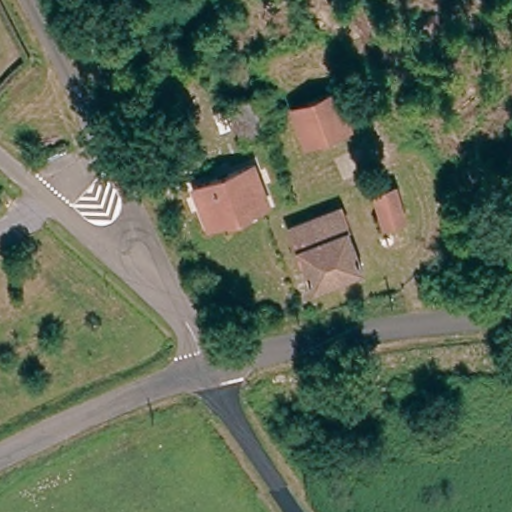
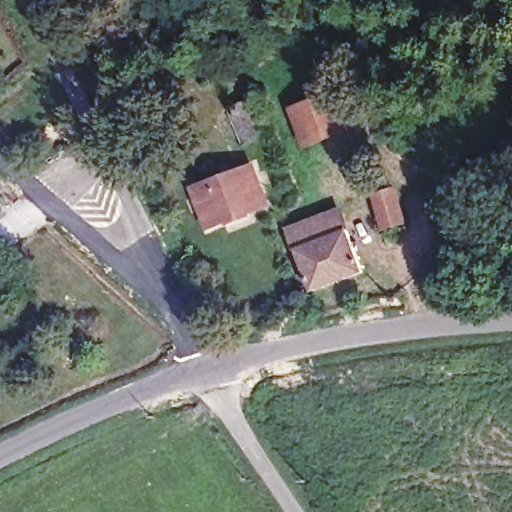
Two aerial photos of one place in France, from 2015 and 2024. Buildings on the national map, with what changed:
unchanged [(342,94),(358,129),(312,149),(297,114),(342,94)]
unchanged [(222,121),(250,106),(262,99),(278,131),(265,137),(237,151),(222,121)]
unchanged [(250,172),(267,212),(251,219),(252,222),(231,231),(230,227),(210,236),(194,196),(250,172)]
unchanged [(404,187),(414,225),(388,232),(378,197),(404,187)]
unchanged [(340,214),(365,272),(320,292),(295,234),(340,214)]
unchanged [(387,237),(388,237),(389,236),(391,236),(393,236),(395,237),(396,239),(397,241),(398,244),(397,246),(396,247),(394,249),(393,249),(392,249),(390,249),(387,247),(386,246),(385,244),(385,241),(386,239),(387,237)]

